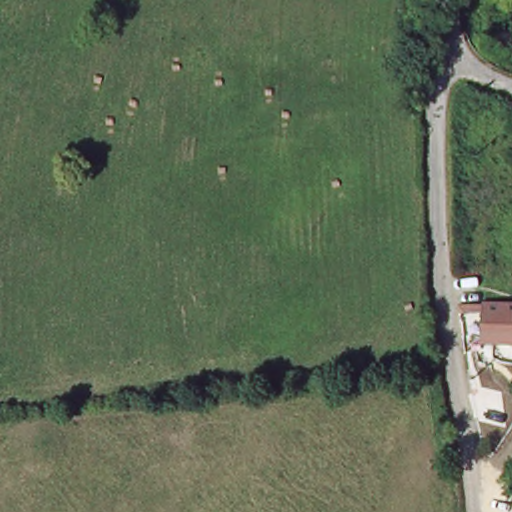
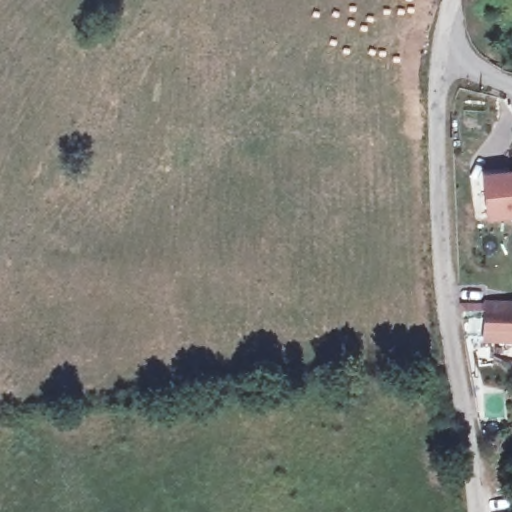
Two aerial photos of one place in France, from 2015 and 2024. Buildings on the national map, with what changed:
new [(482,176),(512,172),(512,219),(486,222),(482,176)]
unchanged [(488,312),(464,312),(463,304),(488,304),(512,304),(512,342),(487,340),(488,312)]

